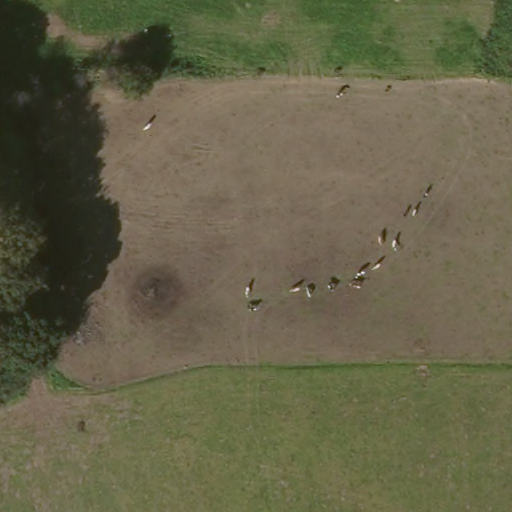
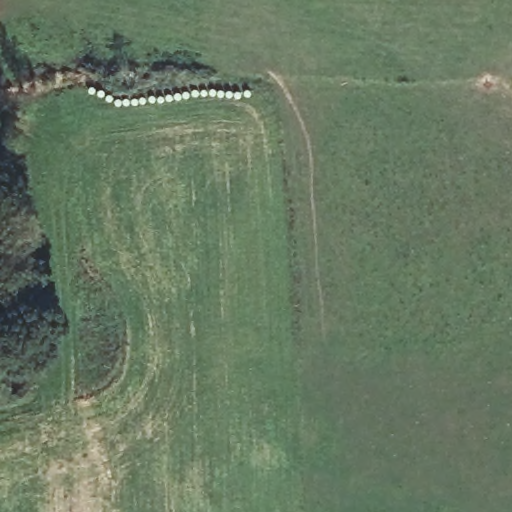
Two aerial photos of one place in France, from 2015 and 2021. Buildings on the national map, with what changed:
[]

